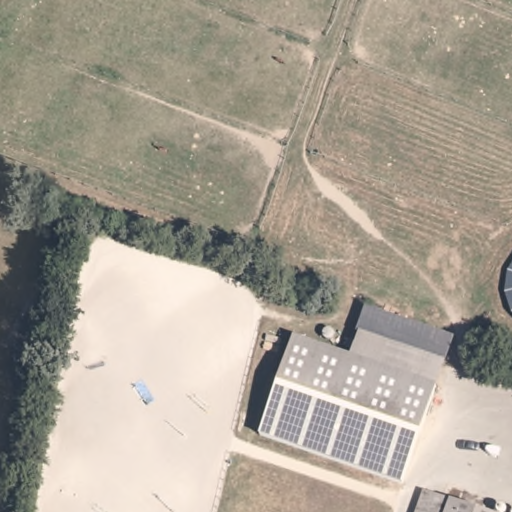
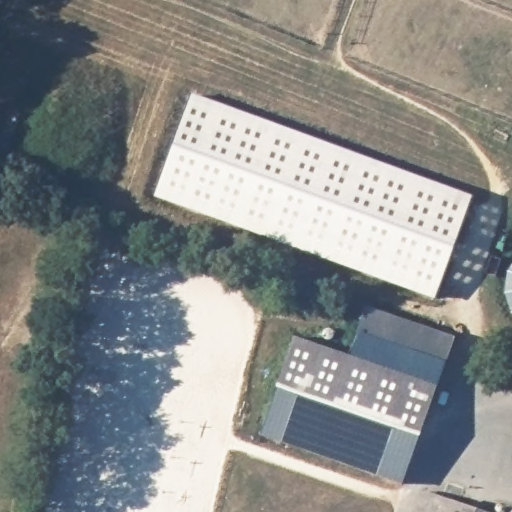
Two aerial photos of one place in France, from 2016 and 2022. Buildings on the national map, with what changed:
new [(191,92),(472,195),(436,299),(153,196),(191,92)]
unchanged [(505,292),(506,273),(512,265),(512,313),(511,312),(505,292)]
unchanged [(350,352),(359,328),(366,307),(454,335),(437,382),(403,477),(260,430),(295,332),(350,352)]
unchanged [(480,512),(423,512),(429,495),(480,512)]

